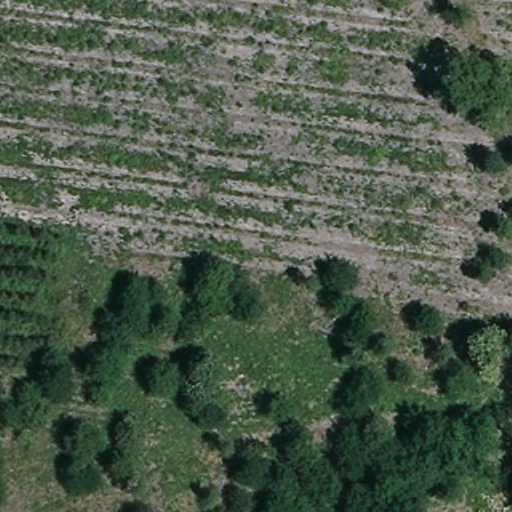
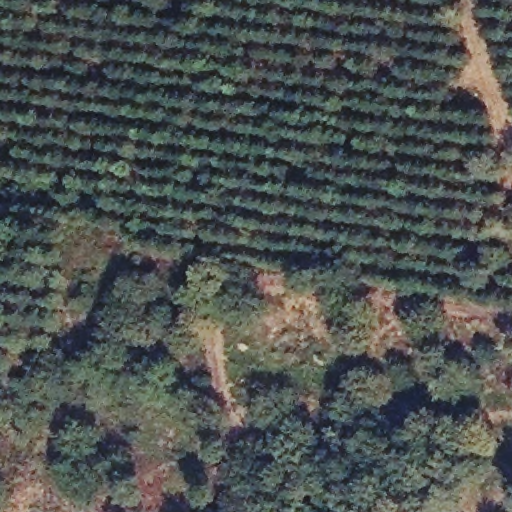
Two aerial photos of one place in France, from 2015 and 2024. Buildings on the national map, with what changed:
[]

